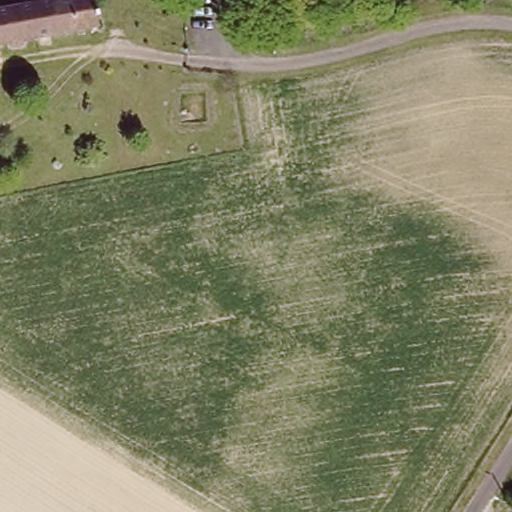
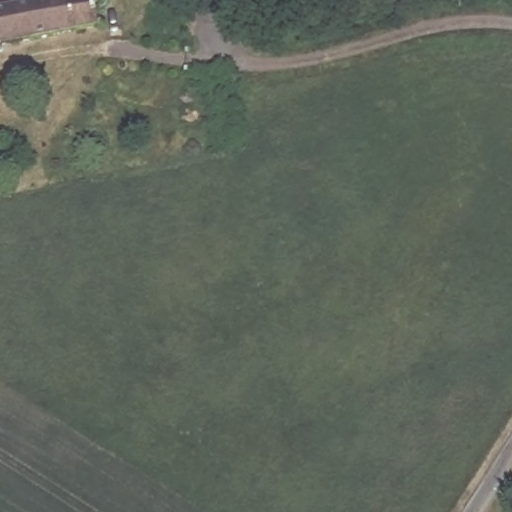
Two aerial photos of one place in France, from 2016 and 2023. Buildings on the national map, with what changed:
unchanged [(83,0),(97,1),(105,28),(0,47),(0,13),(76,0),(83,0)]

